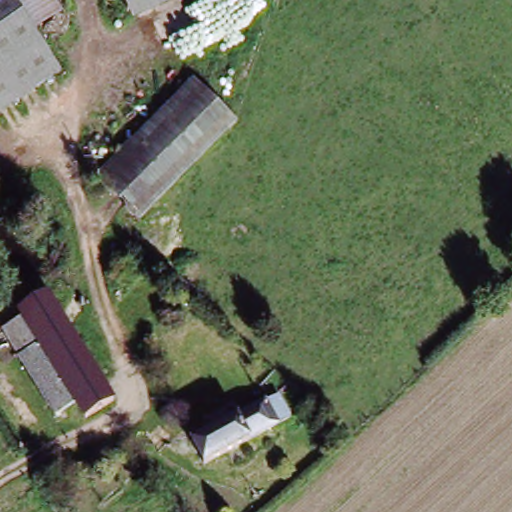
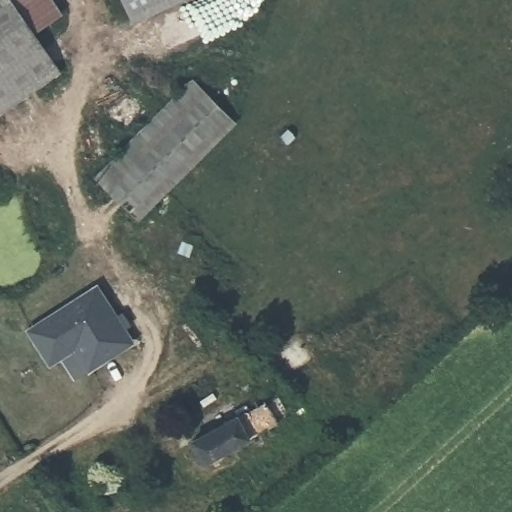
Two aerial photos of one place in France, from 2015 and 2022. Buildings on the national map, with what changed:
unchanged [(0,118),(0,0),(13,0),(64,72),(0,118)]
unchanged [(193,77),(237,120),(140,221),(95,178),(193,77)]
new [(119,315),(125,312),(132,325),(128,329),(138,344),(79,381),(65,358),(50,368),(27,331),(99,285),(119,315)]
demolished [(42,345),(25,317),(22,312),(55,293),(115,402),(85,419),(75,403),(42,345)]
demolished [(42,345),(75,403),(55,415),(17,351),(21,348),(8,327),(25,317),(42,345)]
unchanged [(257,411),(270,432),(202,472),(190,449),(257,411)]

